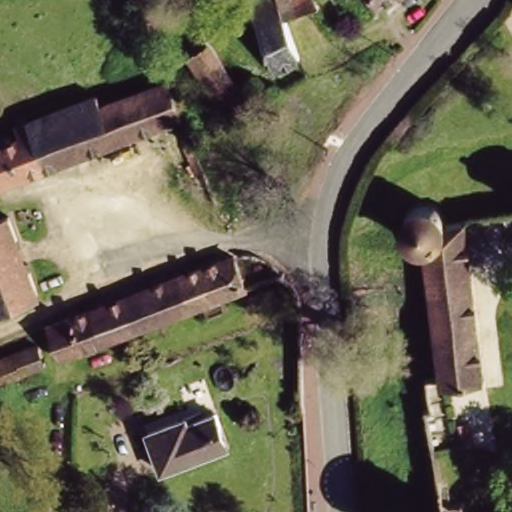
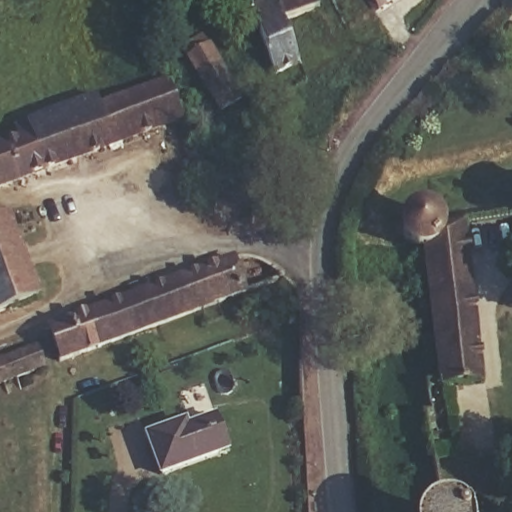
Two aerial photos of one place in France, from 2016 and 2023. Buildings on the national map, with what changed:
unchanged [(264,42),(242,2),(247,0),(274,0),(286,20),(291,30),(303,53),(277,67),(264,42)]
unchanged [(306,0),(310,8),(286,20),(274,0),(306,0)]
unchanged [(376,0),(388,0),(379,5),(376,0)]
unchanged [(223,109),(208,89),(182,56),(201,44),(225,74),(242,95),(223,109)]
unchanged [(29,123),(27,117),(55,108),(89,96),(94,109),(167,85),(182,122),(0,182),(0,133),(29,123)]
unchanged [(436,377),(435,370),(424,262),(423,256),(422,246),(406,233),(404,217),(409,208),(412,204),(432,202),(447,212),(458,210),(459,210),(475,373),(449,376),(436,377)]
unchanged [(41,285),(0,308),(0,212),(41,285)]
unchanged [(58,352),(48,322),(231,258),(237,275),(276,262),(288,273),(58,352)]
unchanged [(37,362),(0,375),(0,353),(39,339),(46,358),(37,362)]
unchanged [(449,376),(452,438),(435,438),(434,423),(432,377),(435,377),(436,377),(449,376)]
unchanged [(178,428),(179,432),(216,418),(227,448),(163,473),(150,438),(178,428)]
unchanged [(460,512),(436,512),(443,507),(460,512)]

